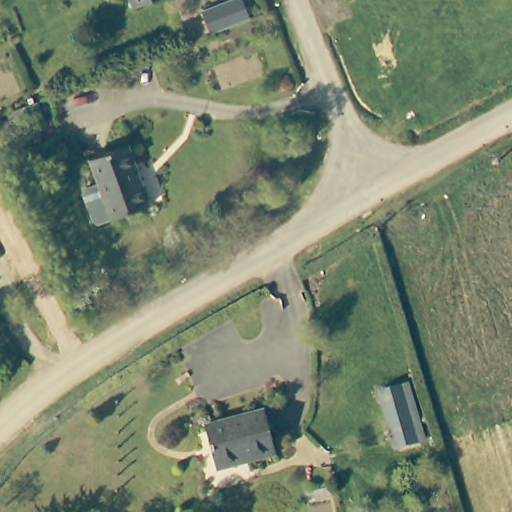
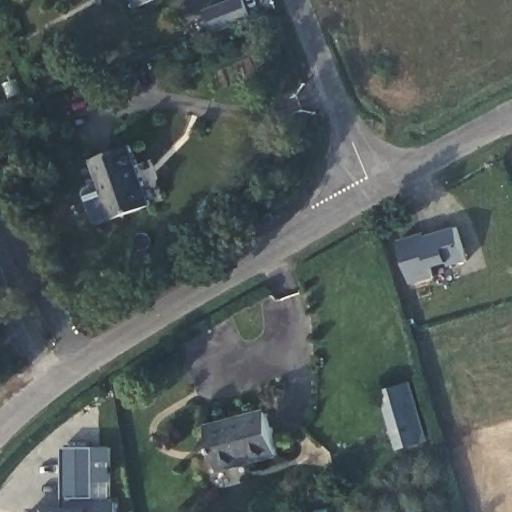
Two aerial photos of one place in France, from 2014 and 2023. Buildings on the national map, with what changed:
unchanged [(129,9),(126,0),(152,0),(129,9)]
unchanged [(202,12),(232,0),(242,0),(249,21),(211,34),(202,12)]
unchanged [(90,218),(83,188),(86,184),(99,181),(94,157),(135,147),(149,208),(108,218),(94,221),(90,218)]
new [(417,234),(418,238),(454,227),(464,260),(447,265),(446,262),(429,267),(431,276),(409,283),(397,240),(417,234)]
unchanged [(405,387),(422,445),(400,451),(381,394),(405,387)]
unchanged [(271,459),(209,474),(199,431),(260,417),(271,459)]
new [(116,501),(116,512),(29,512),(29,507),(41,507),(61,507),(61,448),(95,449),(94,500),(116,501)]

